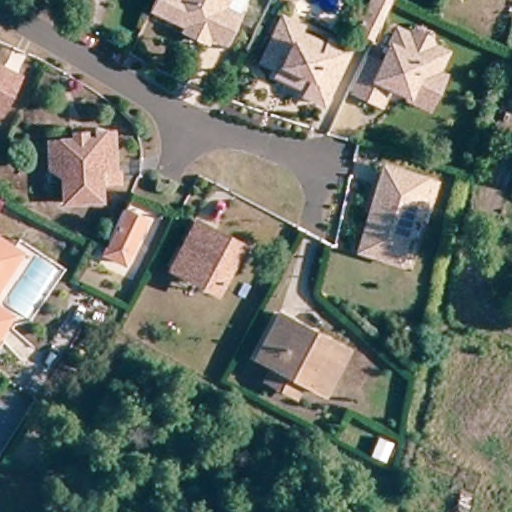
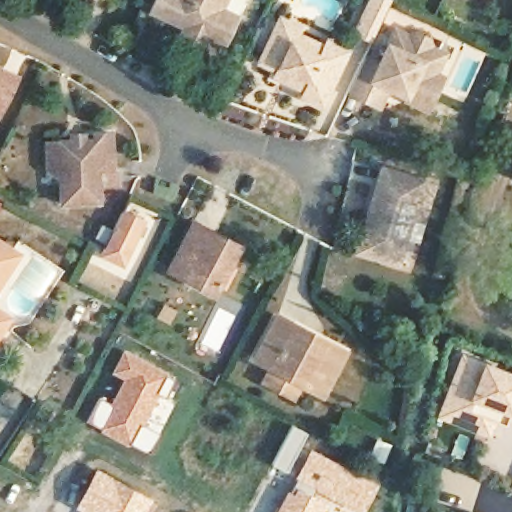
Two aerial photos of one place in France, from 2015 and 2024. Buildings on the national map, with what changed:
unchanged [(180,29),(183,24),(165,15),(172,0),(222,0),(219,7),(235,14),(221,42),(205,34),(202,40),(180,29)]
unchanged [(365,38),(349,31),(363,0),(382,0),(365,38)]
unchanged [(295,94),(298,87),(268,74),(271,67),(252,59),(273,16),(292,25),(290,29),(319,42),(321,38),(341,47),(314,102),(295,94)]
unchanged [(424,112),(401,101),(403,97),(388,90),(383,92),(375,107),(346,93),(358,69),(362,60),(377,67),(393,34),(406,41),(415,37),(424,42),(427,51),(441,57),(431,77),(439,81),(424,112)]
unchanged [(0,113),(0,69),(18,78),(0,113)]
unchanged [(91,135),(106,134),(109,170),(94,170),(95,203),(57,205),(55,169),(43,170),(41,142),(54,142),(67,142),(66,136),(79,135),(79,141),(91,141),(91,135)]
unchanged [(436,181),(430,200),(425,217),(414,214),(399,262),(358,250),(369,213),(378,184),(384,166),(436,181)]
unchanged [(139,222),(117,266),(98,256),(101,249),(120,212),(139,222)]
unchanged [(179,276),(164,268),(189,221),(234,244),(214,283),(209,292),(179,276)]
unchanged [(0,284),(0,247),(17,258),(0,284)]
unchanged [(268,378),(275,365),(258,357),(281,312),(297,321),(295,326),(326,342),(329,337),(349,347),(326,392),(306,381),(299,395),(268,378)]
unchanged [(0,332),(0,317),(7,322),(0,332)]
new [(99,396),(110,402),(121,378),(110,372),(122,347),(178,377),(166,400),(161,397),(146,425),(158,432),(146,452),(129,443),(128,446),(86,422),(99,396)]
new [(493,416),(489,413),(483,426),(439,403),(442,397),(460,362),(467,348),(488,359),(512,371),(512,400),(507,410),(502,420),(493,416)]
new [(291,423),(308,432),(286,472),(270,463),(291,423)]
new [(309,446),(379,482),(363,512),(273,512),(276,505),(309,446)]
new [(155,498),(147,512),(82,512),(73,507),(95,465),(155,498)]

